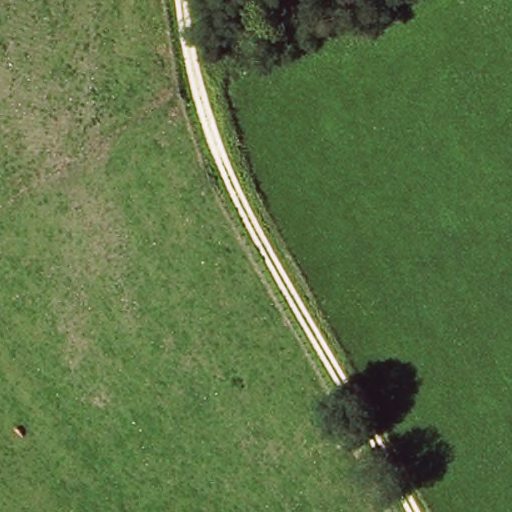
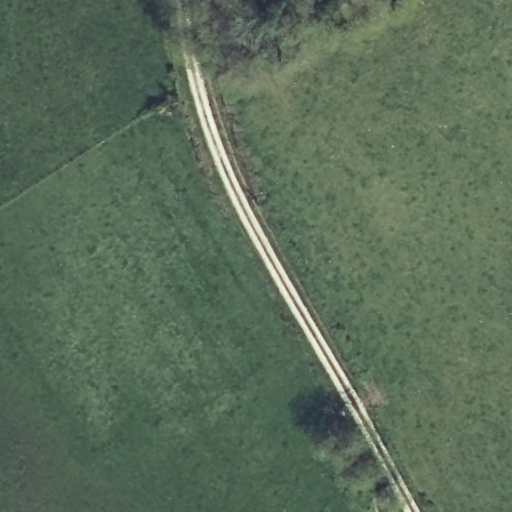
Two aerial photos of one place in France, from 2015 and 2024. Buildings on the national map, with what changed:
[]

